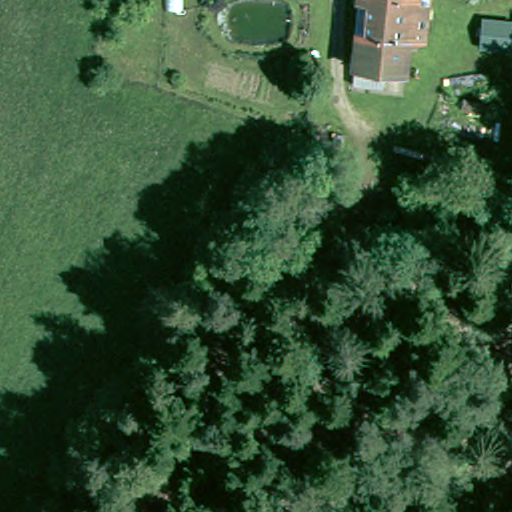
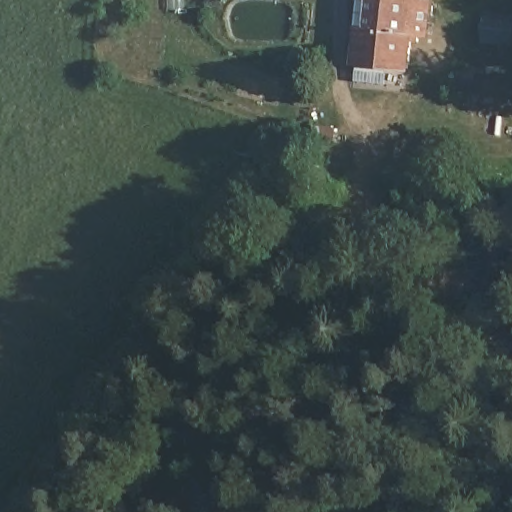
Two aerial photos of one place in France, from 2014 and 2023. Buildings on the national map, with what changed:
unchanged [(352,57),(348,56),(358,0),(425,0),(420,27),(415,30),(412,37),(412,43),(405,43),(400,66),(380,62),(377,80),(348,75),(352,57)]

